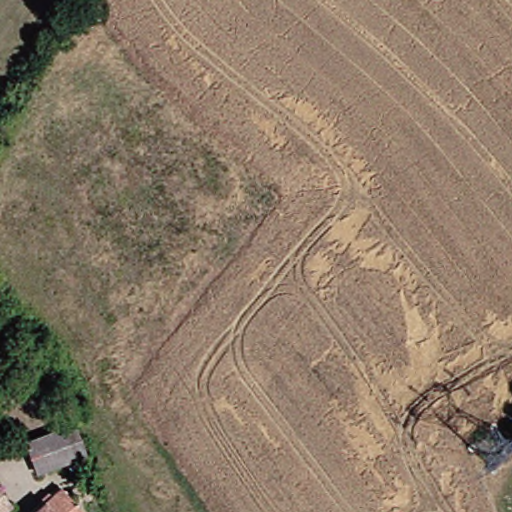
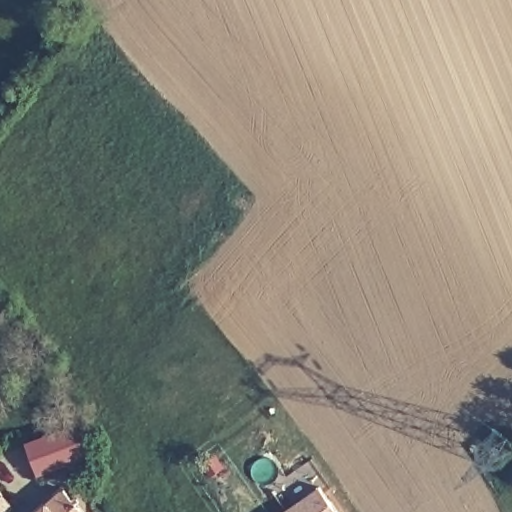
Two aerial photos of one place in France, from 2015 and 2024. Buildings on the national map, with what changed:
unchanged [(87,457),(38,475),(27,446),(76,428),(87,457)]
unchanged [(14,512),(0,512),(0,487),(17,509),(14,512)]
new [(335,512),(286,512),(320,489),(335,512)]
unchanged [(40,512),(63,491),(80,512),(40,512)]

